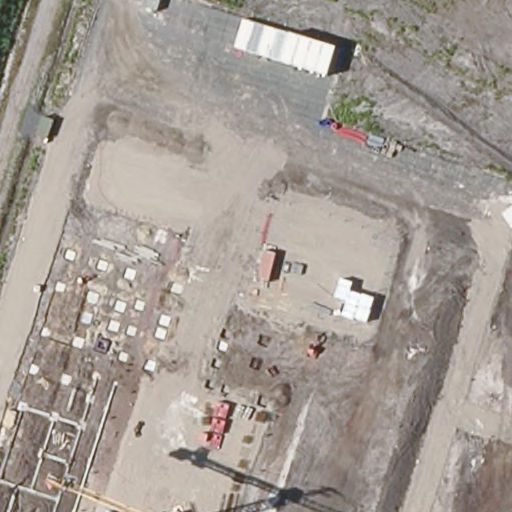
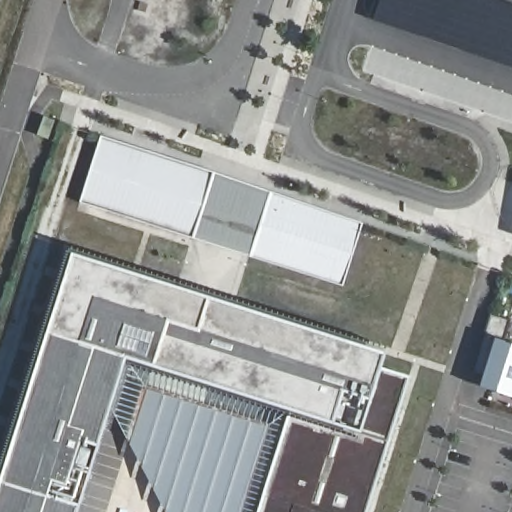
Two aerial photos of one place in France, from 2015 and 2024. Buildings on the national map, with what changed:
new [(191,235),(79,199),(99,135),(212,171),(191,235)]
new [(365,223),(345,287),(191,235),(212,171),(365,223)]
new [(380,367),(359,432),(288,410),(124,359),(76,512),(0,512),(0,470),(69,252),(385,353),(380,367)]
new [(492,337),(512,344),(512,397),(477,386),(492,337)]
new [(366,512),(256,512),(288,410),(359,432),(380,367),(408,376),(366,512)]

